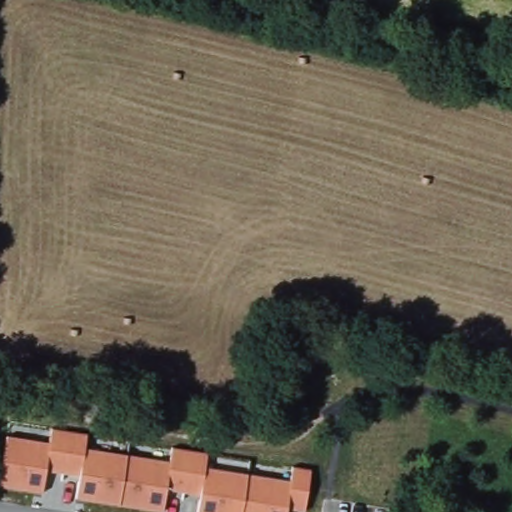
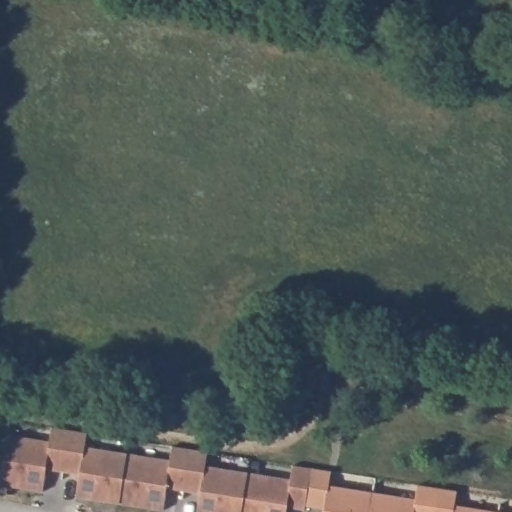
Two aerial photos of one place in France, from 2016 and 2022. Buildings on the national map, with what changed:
unchanged [(286,507),(285,512),(197,512),(199,495),(165,490),(162,511),(74,497),(77,477),(45,471),(42,493),(0,487),(0,481),(7,435),(50,440),(52,428),(88,435),(86,449),(170,461),(174,444),(209,450),(206,466),(290,480),(292,467),(312,468),(305,510),(286,507)]
new [(331,472),(330,485),(415,499),(417,485),(458,491),(456,505),(495,512),(324,512),(325,510),(305,510),(312,468),(331,472)]

